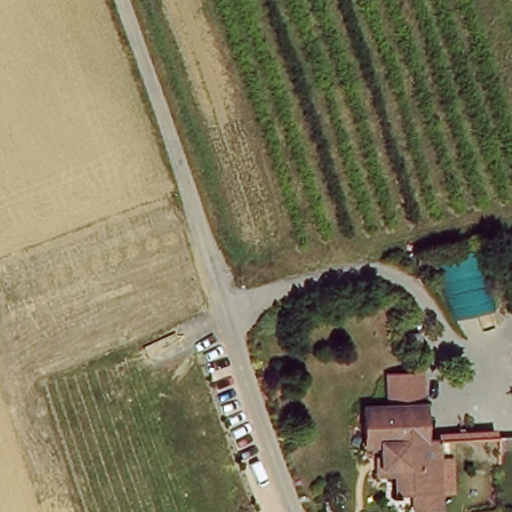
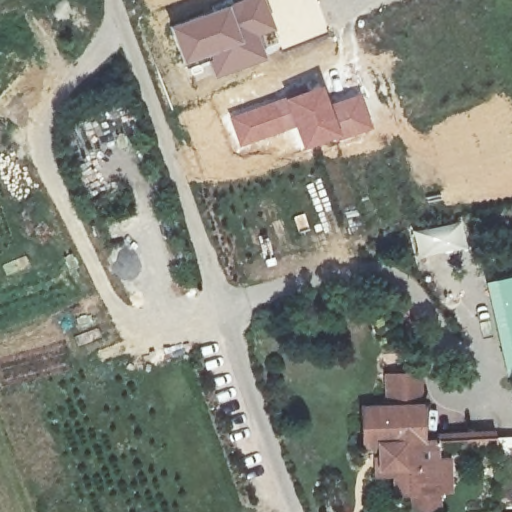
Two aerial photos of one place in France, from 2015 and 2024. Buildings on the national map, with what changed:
new [(264,0),(275,26),(258,34),(267,55),(215,79),(205,55),(183,64),(168,24),(235,0),(264,0)]
new [(320,83),(327,102),(337,133),(335,134),(300,147),(292,126),(282,95),(320,83)]
new [(360,91),(371,126),(337,138),(335,134),(337,133),(327,102),(360,91)]
new [(282,95),(292,126),(240,144),(230,115),(282,95)]
new [(459,218),(466,247),(419,257),(412,229),(459,218)]
demolished [(452,320),(434,260),(475,248),(493,309),(452,320)]
new [(505,375),(484,280),(512,274),(512,374),(505,375)]
unchanged [(415,493),(415,486),(397,487),(395,458),(386,459),(385,447),(366,448),(364,408),(388,407),(387,377),(419,375),(421,406),(423,436),(434,436),(437,478),(437,493),(415,493)]
new [(506,443),(506,449),(512,449),(512,457),(501,458),(499,444),(506,443)]

